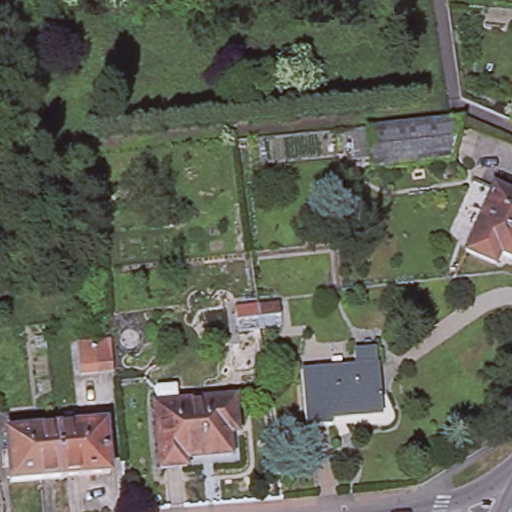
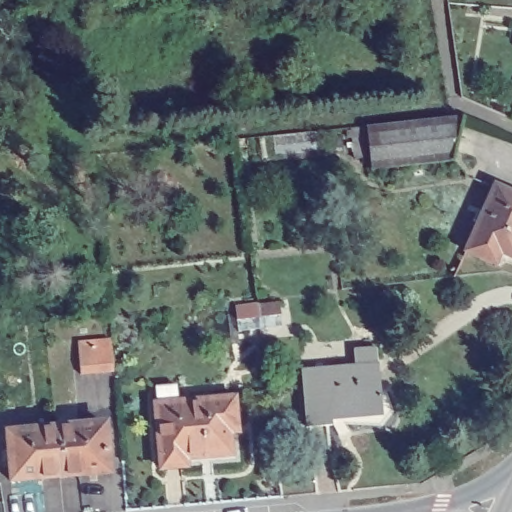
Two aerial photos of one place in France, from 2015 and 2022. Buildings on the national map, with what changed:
unchanged [(365,124),(455,112),(459,152),(373,165),(365,124)]
unchanged [(512,195),(512,261),(483,248),(467,241),(475,224),(479,217),(492,186),(512,195)]
unchanged [(234,303),(257,301),(278,298),(280,322),(259,324),(235,327),(234,303)]
unchanged [(79,375),(76,343),(109,340),(112,372),(79,375)]
unchanged [(302,368),(375,362),(380,410),(328,415),(329,421),(306,423),(302,368)]
unchanged [(182,458),(183,466),(159,468),(153,405),(232,398),(234,423),(225,424),(228,454),(182,458)]
unchanged [(54,427),(92,424),(92,428),(103,427),(107,474),(59,477),(54,427)]
unchanged [(59,477),(8,481),(5,434),(16,433),(15,430),(54,427),(59,477)]

